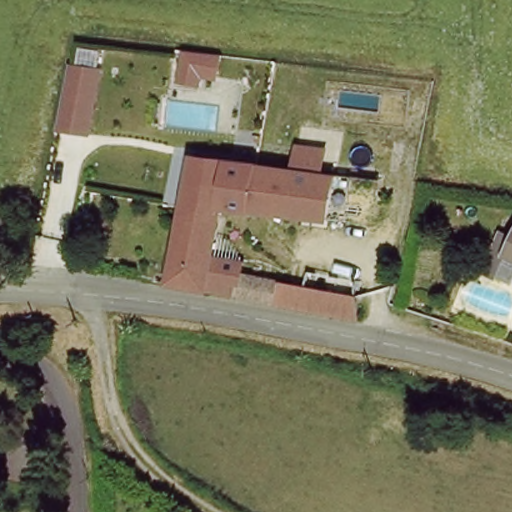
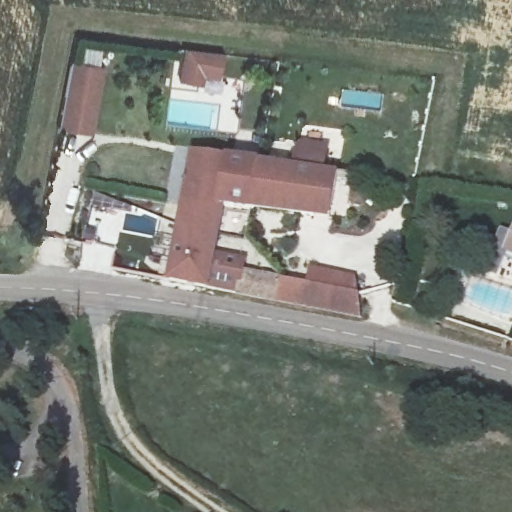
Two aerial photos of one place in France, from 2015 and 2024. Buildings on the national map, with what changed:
unchanged [(190,54),(227,56),(225,87),(188,84),(190,54)]
unchanged [(110,73),(104,105),(72,100),(79,69),(110,73)]
unchanged [(104,105),(97,137),(66,132),(72,100),(104,105)]
unchanged [(356,317),(282,302),(225,292),(175,283),(182,228),(190,156),(256,164),(325,171),(317,216),(249,212),(223,210),(220,235),(217,265),(285,279),(352,293),(362,318),(356,317)]
unchanged [(512,254),(512,256),(511,256),(512,254)]

